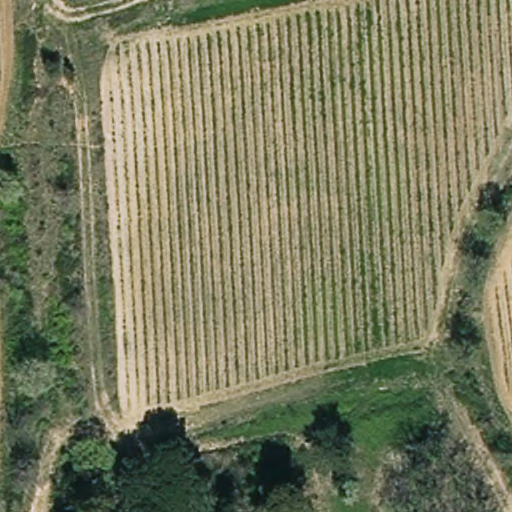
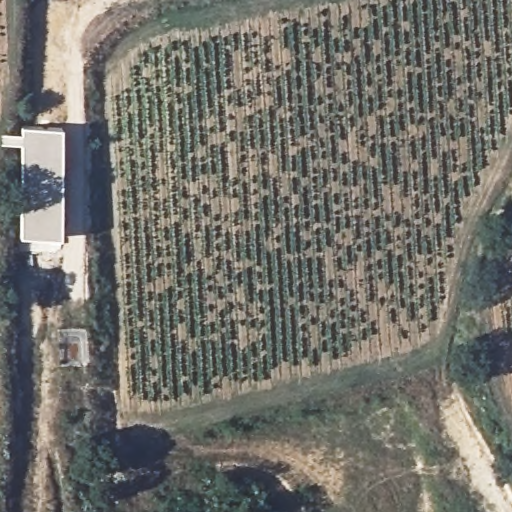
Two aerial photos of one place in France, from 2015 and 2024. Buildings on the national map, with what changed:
new [(58,238),(20,236),(25,145),(17,144),(17,133),(22,133),(23,125),(63,128),(58,238)]

